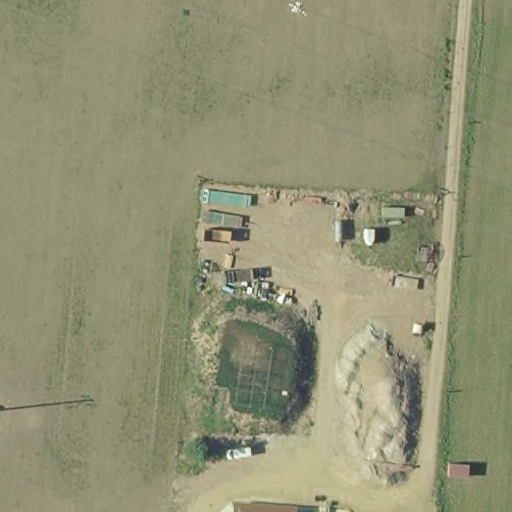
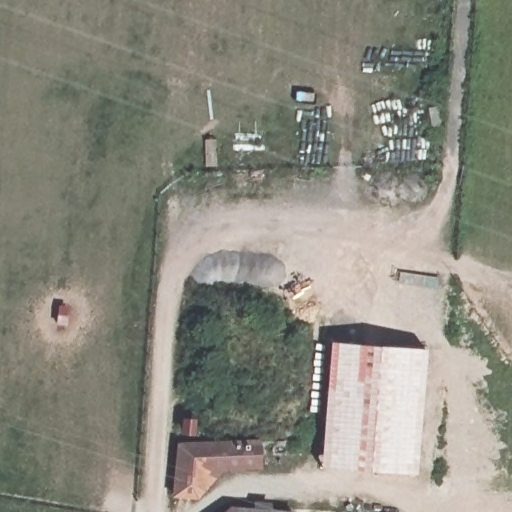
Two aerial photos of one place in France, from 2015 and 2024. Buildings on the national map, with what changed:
new [(428,349),(419,474),(321,469),(331,343),(428,349)]
new [(221,470),(196,499),(171,498),(176,443),(259,440),(261,469),(221,470)]
unchanged [(296,508),(295,512),(229,512),(230,505),(296,508)]

